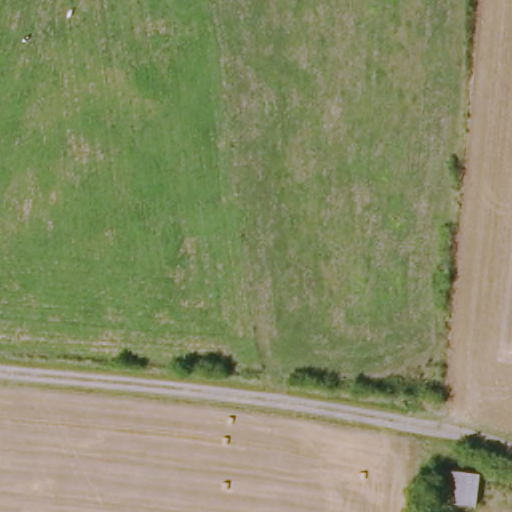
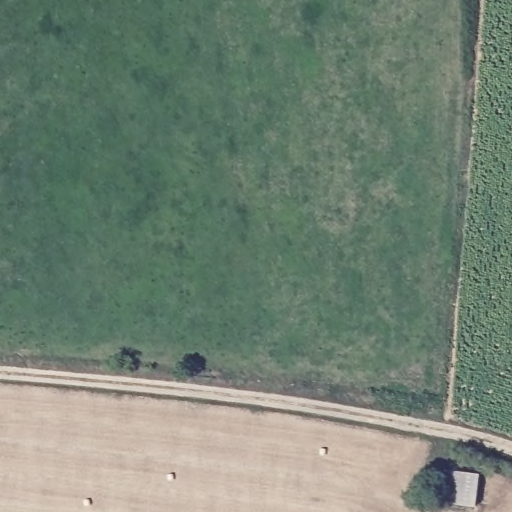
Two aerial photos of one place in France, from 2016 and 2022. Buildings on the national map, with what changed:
unchanged [(474,482),(469,512),(466,512),(426,504),(432,473),(474,482)]

